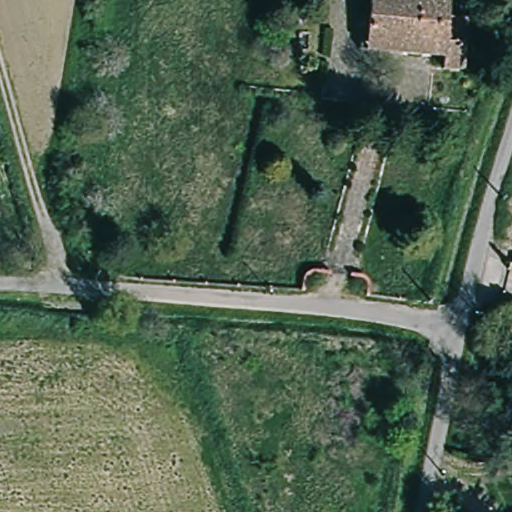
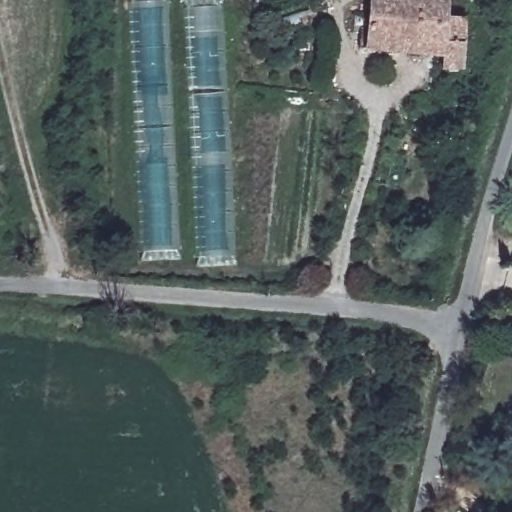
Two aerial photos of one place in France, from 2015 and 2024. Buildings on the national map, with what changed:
unchanged [(449,16),(465,16),(465,67),(444,65),(446,52),(420,47),(362,44),(361,19),(370,20),(370,0),(448,0),(449,16)]
new [(128,2),(167,1),(179,251),(142,254),(128,2)]
new [(184,9),(223,7),(236,256),(195,258),(184,9)]

